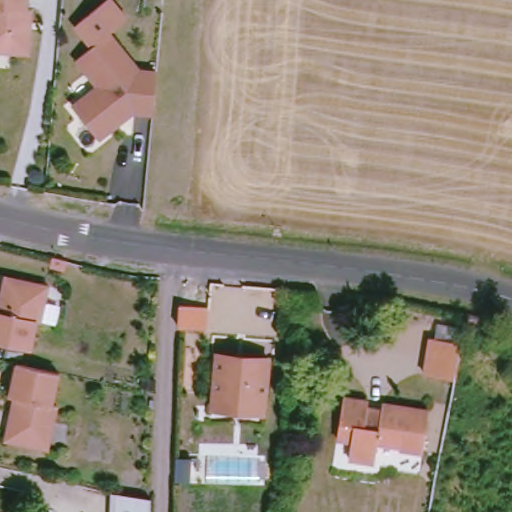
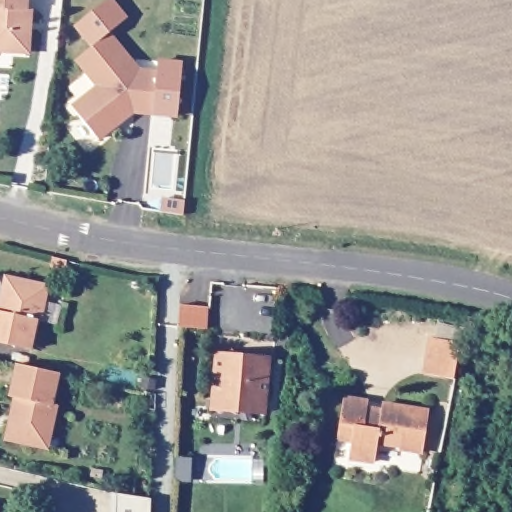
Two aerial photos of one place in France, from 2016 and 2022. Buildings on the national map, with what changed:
unchanged [(27,15),(32,15),(30,52),(12,51),(11,57),(0,57),(0,0),(28,0),(27,15)]
unchanged [(72,29),(102,0),(113,0),(126,16),(105,35),(93,48),(90,51),(72,29)]
unchanged [(128,114),(118,125),(119,127),(104,142),(75,112),(98,89),(76,65),(105,35),(130,62),(128,65),(134,72),(157,74),(153,117),(128,114)]
new [(157,74),(158,63),(180,65),(174,119),(153,117),(157,74)]
new [(168,198),(186,201),(184,215),(166,212),(168,198)]
unchanged [(39,317),(34,323),(30,347),(0,342),(0,279),(1,275),(8,276),(45,282),(39,317)]
unchanged [(452,379),(423,373),(430,337),(458,342),(452,379)]
unchanged [(258,420),(207,417),(211,352),(263,353),(258,420)]
unchanged [(33,447),(2,441),(6,412),(11,413),(13,401),(4,399),(9,365),(53,374),(49,404),(52,405),(48,430),(44,450),(33,447)]
unchanged [(338,425),(342,397),(367,401),(366,412),(380,413),(381,403),(427,409),(422,450),(377,443),(374,463),(349,460),(351,443),(337,440),(338,425)]

